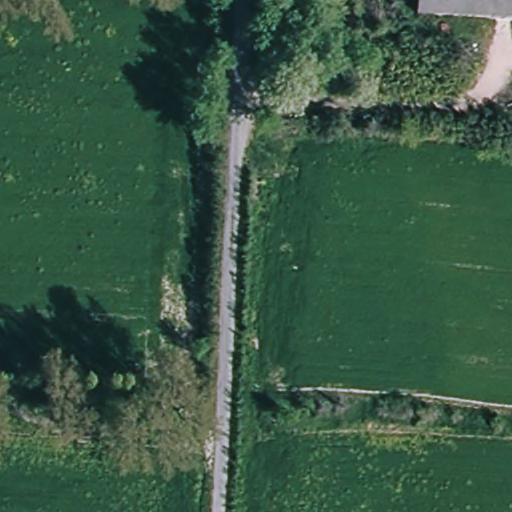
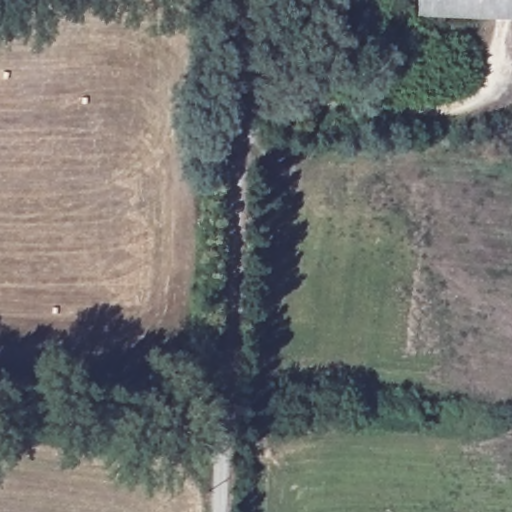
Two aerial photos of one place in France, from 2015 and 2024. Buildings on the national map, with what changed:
unchanged [(417,4),(417,0),(512,0),(512,10),(417,4)]

